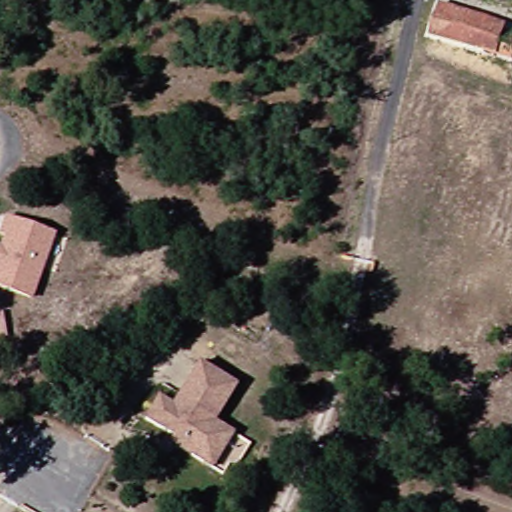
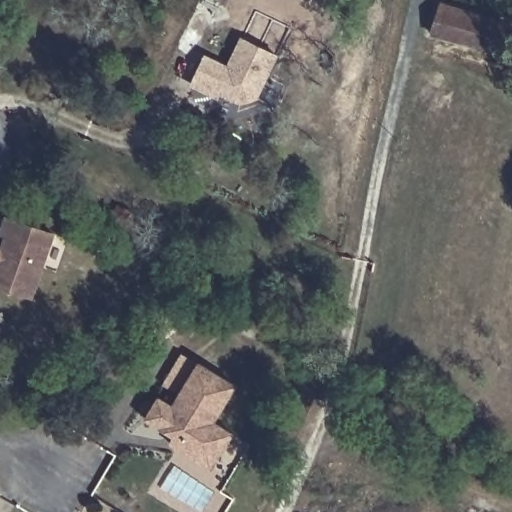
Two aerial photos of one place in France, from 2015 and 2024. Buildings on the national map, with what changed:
unchanged [(442,5),(509,26),(501,53),(433,35),(442,5)]
unchanged [(498,66),(501,53),(509,26),(512,27),(512,70),(498,66)]
new [(207,93),(190,84),(205,55),(227,67),(241,38),(275,55),(255,97),(240,102),(219,91),(216,96),(207,93)]
unchanged [(30,294),(0,284),(0,243),(4,232),(0,231),(0,223),(4,214),(51,230),(30,294)]
new [(6,338),(0,338),(0,313),(2,313),(6,338)]
unchanged [(212,467),(204,461),(177,445),(181,439),(147,418),(165,388),(180,395),(200,362),(236,383),(215,420),(221,423),(234,431),(212,467)]

